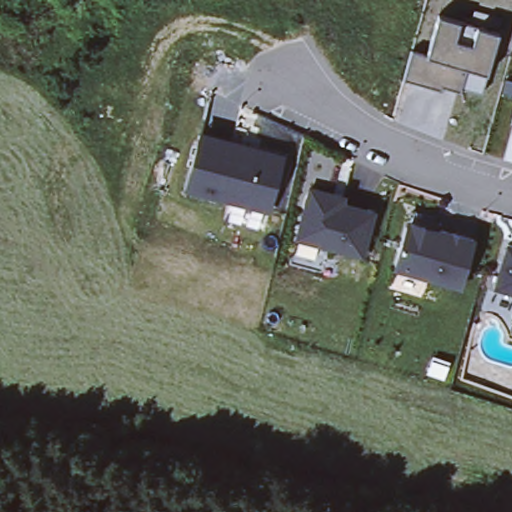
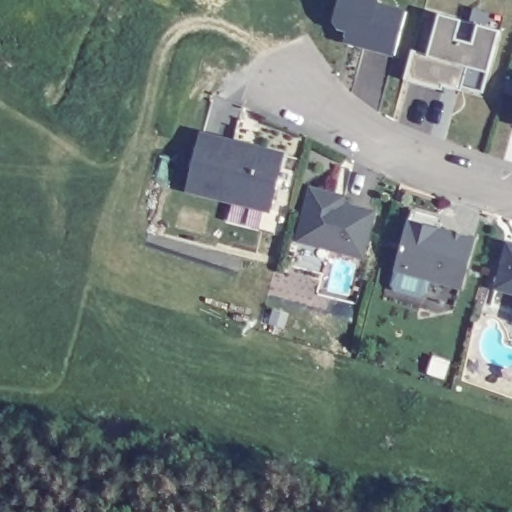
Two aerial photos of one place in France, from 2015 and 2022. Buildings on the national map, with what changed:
new [(347,31),(337,30),(331,20),(336,0),(377,0),(376,2),(408,11),(394,57),(344,44),(347,31)]
unchanged [(412,53),(428,57),(439,16),(469,25),(474,11),(503,20),(499,33),(483,95),(462,90),(461,94),(443,89),(442,93),(404,82),(412,53)]
unchanged [(201,139),(202,133),(259,147),(283,153),(269,207),(188,187),(201,139)]
unchanged [(298,239),(311,186),(334,192),(345,195),(343,202),(374,210),(364,255),(298,239)]
unchanged [(462,285),(462,286),(396,268),(408,224),(414,220),(425,224),(429,230),(439,232),(440,227),(454,232),(475,237),(462,285)]
unchanged [(512,290),(497,285),(509,242),(512,243),(512,290)]

